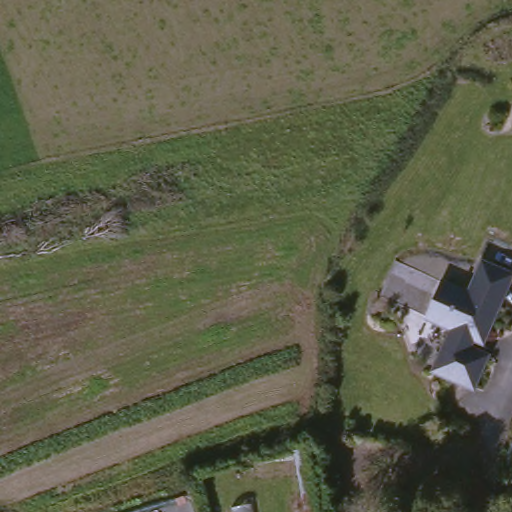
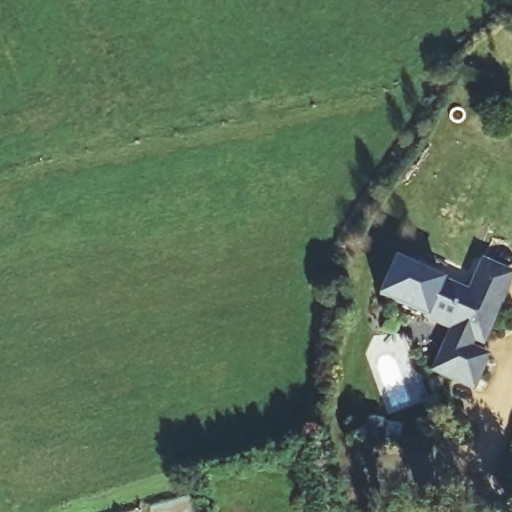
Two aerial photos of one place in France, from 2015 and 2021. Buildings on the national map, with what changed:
unchanged [(434,367),(451,331),(456,333),(461,323),(429,308),(447,273),(474,287),(489,256),(512,267),(512,282),(485,337),(476,332),(471,342),(489,351),(472,386),(434,367)]
unchanged [(321,437),(334,512),(300,512),(285,443),(321,437)]

